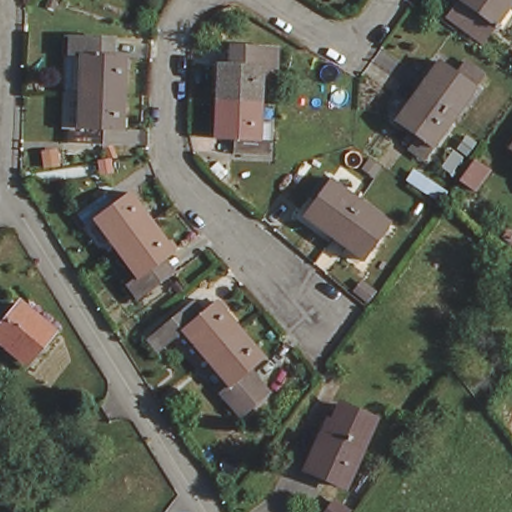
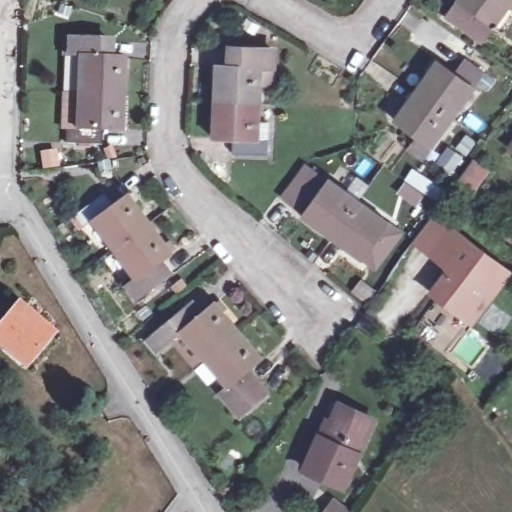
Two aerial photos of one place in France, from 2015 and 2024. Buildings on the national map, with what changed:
unchanged [(459,1),(461,0),(512,0),(512,5),(496,27),(459,1)]
unchanged [(63,54),(64,37),(104,38),(104,54),(124,55),(123,127),(103,126),(103,141),(62,140),(61,128),(63,91),(63,54)]
unchanged [(279,44),(276,76),(264,75),(259,126),(273,127),(271,145),(236,142),(237,128),(216,128),(221,57),(239,58),(241,41),(279,44)]
unchanged [(397,117),(437,59),(473,85),(425,153),(406,139),(413,129),(397,117)]
unchanged [(334,177),(392,222),(364,257),(308,212),(334,177)]
unchanged [(143,308),(131,293),(140,286),(97,232),(88,239),(75,225),(105,201),(116,215),(131,204),(176,261),(163,272),(172,284),(143,308)]
new [(447,262),(430,248),(448,225),(464,238),(507,271),(469,319),(433,290),(448,271),(447,262)]
unchanged [(0,336),(0,332),(24,302),(57,329),(30,361),(0,336)]
unchanged [(149,338),(191,303),(201,315),(214,304),(260,359),(246,370),(266,394),(238,418),(218,394),(226,388),(203,360),(191,370),(170,342),(159,351),(149,338)]
unchanged [(325,439),(338,406),(368,417),(341,485),(306,472),(319,437),(325,439)]
unchanged [(338,512),(316,512),(327,494),(344,505),(338,512)]

